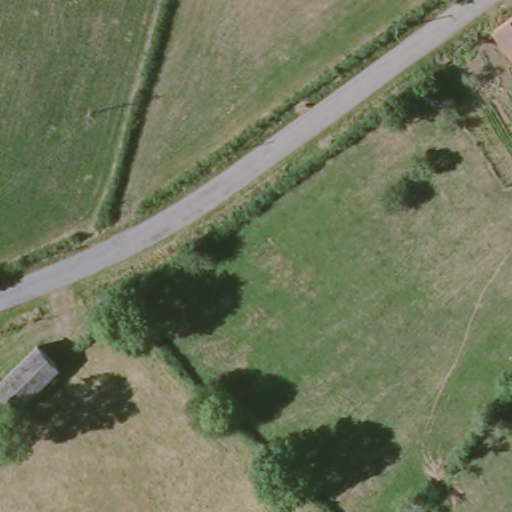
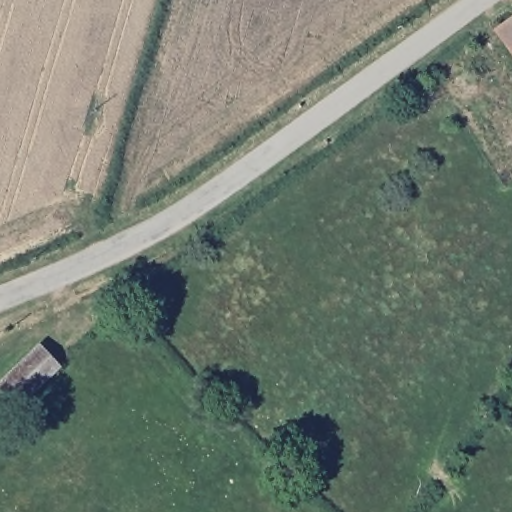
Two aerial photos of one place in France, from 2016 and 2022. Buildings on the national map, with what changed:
unchanged [(512,17),(512,53),(495,30),(512,17)]
unchanged [(53,367),(12,406),(0,393),(0,378),(35,345),(53,367)]

